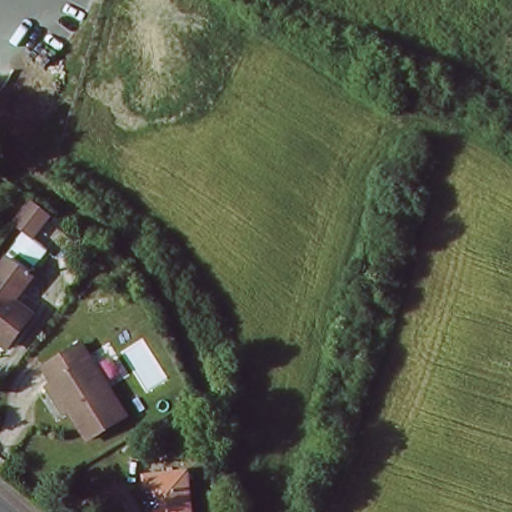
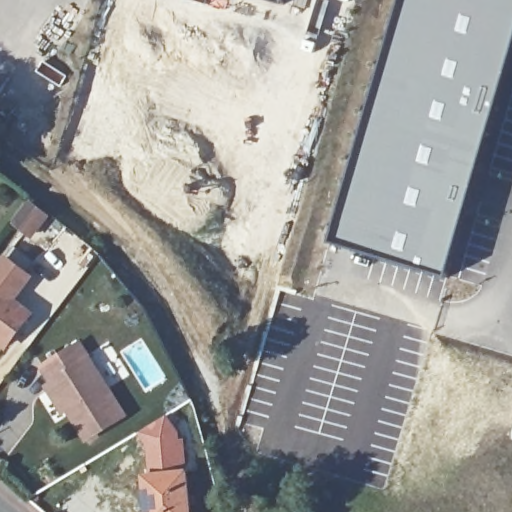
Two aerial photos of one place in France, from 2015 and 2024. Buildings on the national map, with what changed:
new [(272,0),(284,0),(284,3),(272,0)]
new [(373,117),(388,58),(384,56),(392,37),(389,36),(399,0),(512,0),(512,56),(446,277),(330,242),(354,180),(373,117)]
unchanged [(52,209),(37,225),(21,213),(33,197),(52,209)]
unchanged [(0,261),(4,257),(27,275),(9,299),(26,313),(2,344),(0,342),(0,261)]
unchanged [(55,397),(61,393),(63,392),(51,373),(86,349),(124,405),(86,429),(74,412),(68,416),(55,397)]
unchanged [(145,477),(187,473),(191,512),(149,512),(145,477)]

